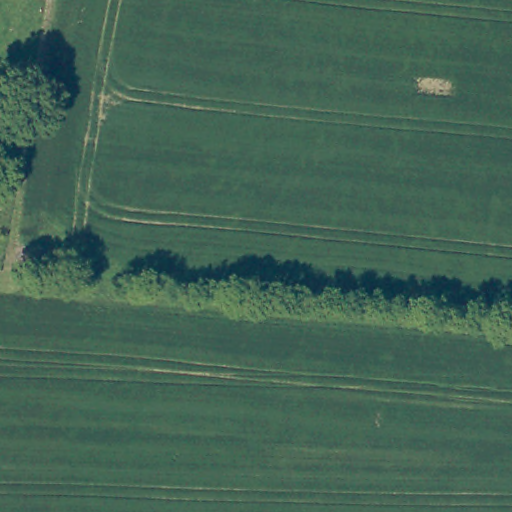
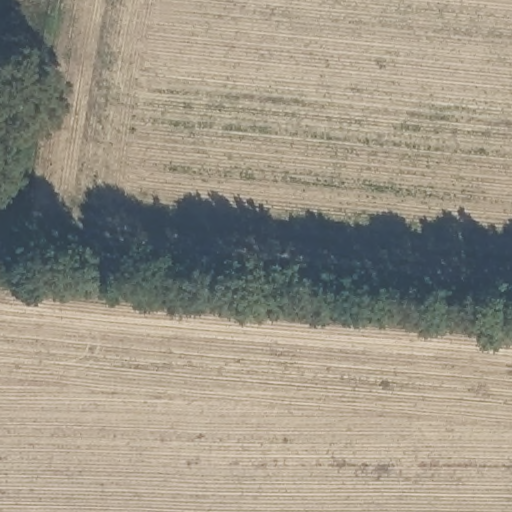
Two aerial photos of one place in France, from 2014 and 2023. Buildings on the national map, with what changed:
[]

